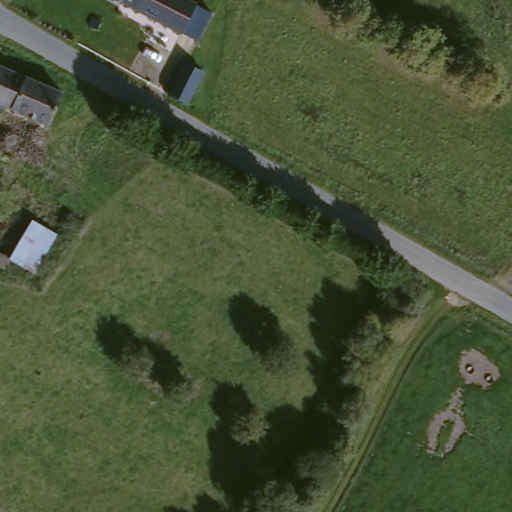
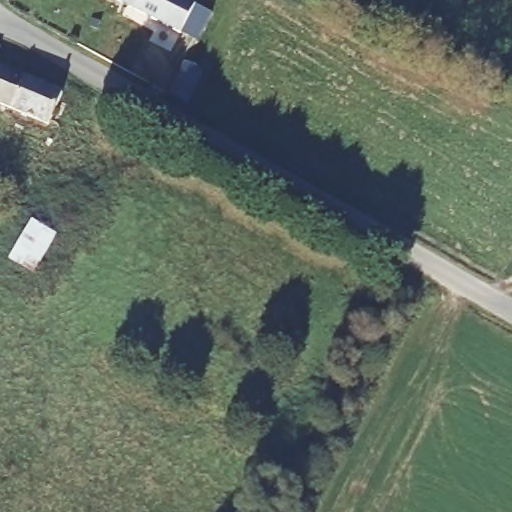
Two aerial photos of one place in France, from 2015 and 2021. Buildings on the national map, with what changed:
unchanged [(116,0),(139,0),(134,9),(116,0)]
unchanged [(196,45),(180,37),(181,35),(134,9),(139,0),(180,0),(195,7),(197,4),(213,12),(196,45)]
unchanged [(170,94),(185,64),(204,72),(188,104),(170,94)]
unchanged [(62,99),(49,129),(0,109),(0,74),(14,79),(62,99)]
unchanged [(64,212),(66,213),(67,214),(69,215),(69,217),(70,219),(70,221),(70,223),(69,225),(68,226),(67,227),(65,228),(64,229),(61,229),(57,228),(61,212),(64,212)]
unchanged [(30,225),(54,238),(31,276),(7,262),(30,225)]

